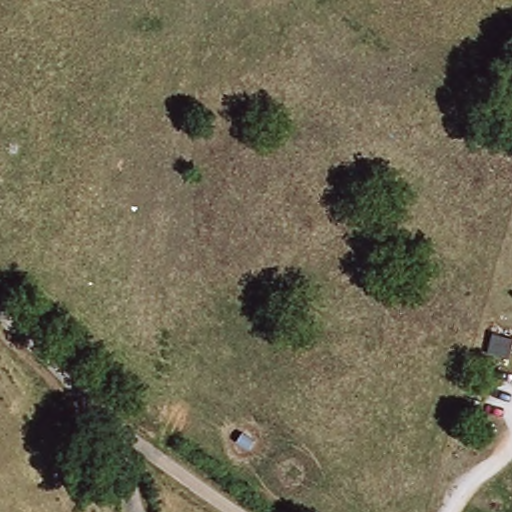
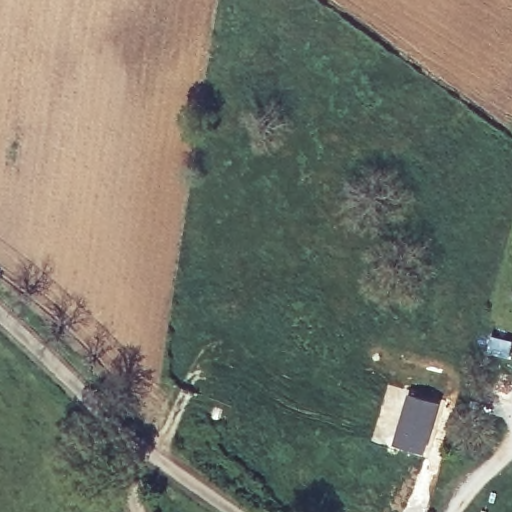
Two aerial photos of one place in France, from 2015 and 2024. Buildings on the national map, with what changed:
new [(427,452),(396,443),(409,396),(440,404),(427,452)]

